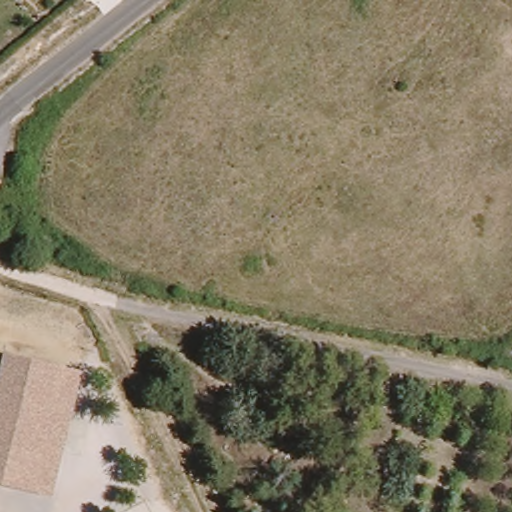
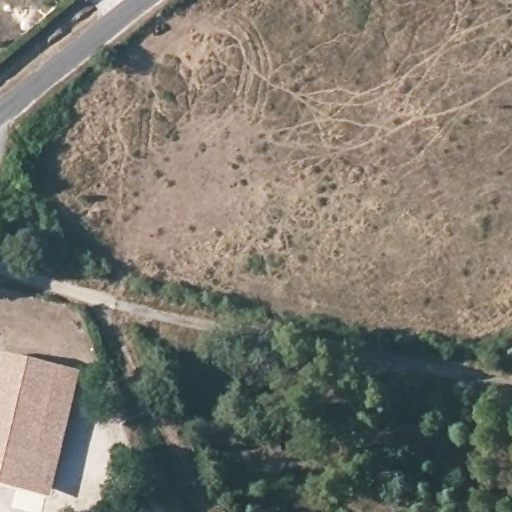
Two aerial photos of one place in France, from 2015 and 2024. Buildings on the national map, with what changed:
unchanged [(48,497),(0,485),(0,368),(3,358),(82,378),(48,497)]

